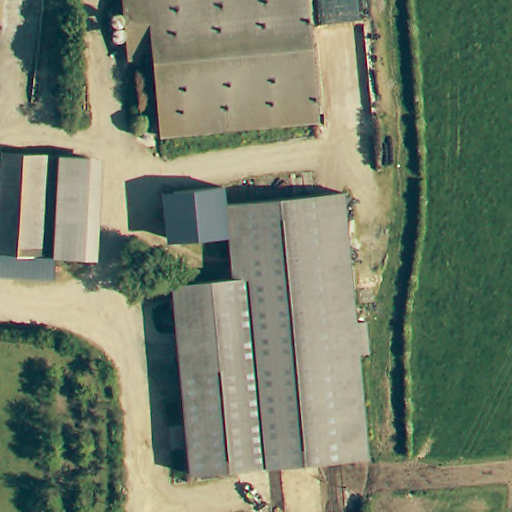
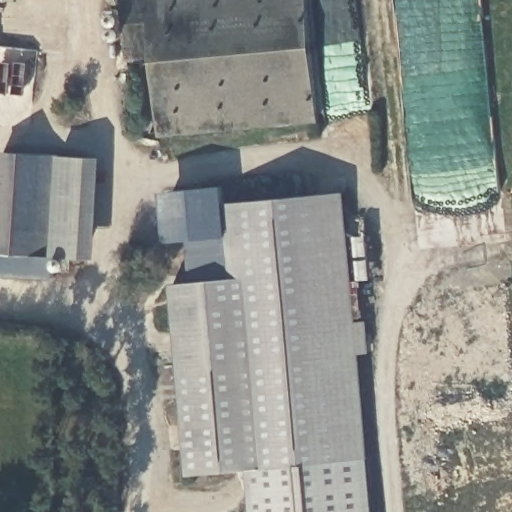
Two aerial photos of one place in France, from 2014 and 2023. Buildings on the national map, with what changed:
unchanged [(319,121),(160,135),(154,56),(128,56),(125,0),(310,0),(319,121)]
unchanged [(62,254),(0,251),(0,195),(2,150),(69,153),(81,154),(89,154),(87,213),(85,255),(62,254)]
unchanged [(167,243),(163,193),(215,189),(216,206),(219,238),(167,243)]
unchanged [(219,238),(216,206),(338,196),(342,246),(349,322),(360,321),(363,350),(353,351),(365,454),(191,469),(174,282),(222,278),(222,268),(219,238)]
new [(219,238),(222,268),(222,278),(192,280),(187,241),(219,238)]
new [(373,512),(254,512),(250,464),(365,454),(373,512)]

